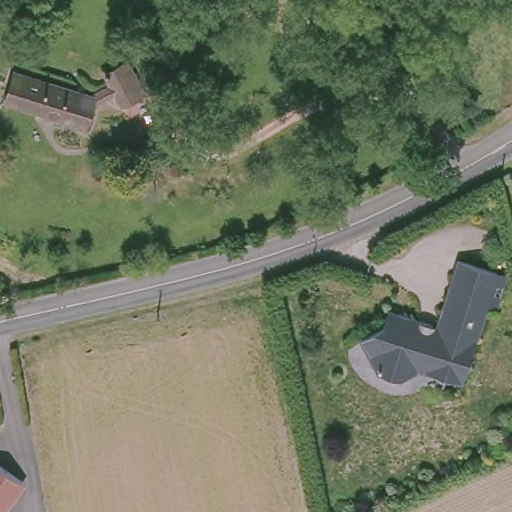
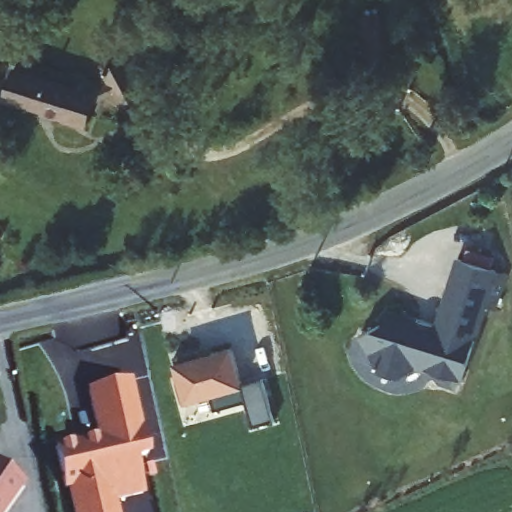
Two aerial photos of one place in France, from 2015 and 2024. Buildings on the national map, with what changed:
unchanged [(373,45),(371,16),(389,16),(391,44),(373,45)]
unchanged [(111,73),(126,65),(136,59),(154,89),(145,95),(129,104),(111,73)]
unchanged [(89,120),(7,95),(16,69),(96,93),(89,120)]
unchanged [(439,329),(463,263),(509,278),(502,300),(493,298),(469,373),(427,360),(403,373),(381,368),(363,337),(385,324),(388,314),(439,329)]
new [(200,347),(203,360),(214,357),(212,351),(232,346),(242,382),(263,376),(275,419),(253,425),(246,400),(215,408),(210,392),(182,400),(176,379),(181,378),(175,354),(200,347)]
new [(86,446),(99,442),(87,389),(128,379),(145,453),(133,456),(142,491),(114,498),(116,512),(74,512),(68,485),(64,486),(54,446),(84,439),(86,446)]
unchanged [(4,512),(0,512),(0,461),(27,479),(4,512)]

